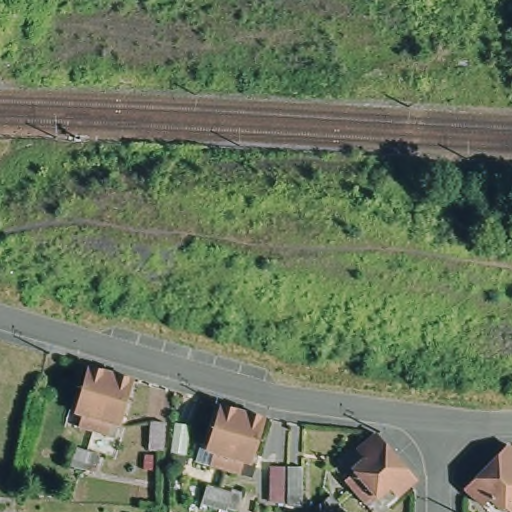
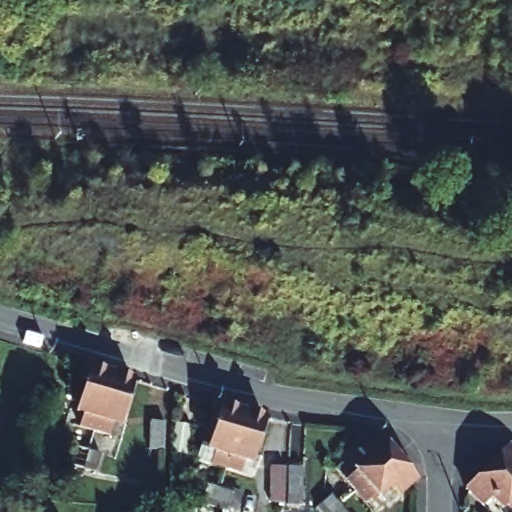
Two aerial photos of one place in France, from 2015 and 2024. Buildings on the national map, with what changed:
unchanged [(83,425),(88,411),(82,409),(94,366),(109,371),(115,373),(99,430),(83,425)]
unchanged [(137,379),(124,423),(118,421),(113,434),(99,430),(115,373),(137,379)]
unchanged [(215,466),(218,453),(213,452),(225,405),(246,411),(233,460),(231,470),(215,466)]
unchanged [(246,411),(248,412),(269,417),(256,464),(249,461),(246,474),(231,470),(233,460),(246,411)]
unchanged [(384,471),(359,493),(347,479),(369,459),(363,451),(381,434),(401,457),(384,471)]
unchanged [(501,508),(489,498),(481,506),(464,490),(464,489),(485,468),(508,446),(512,450),(512,512),(511,512),(504,505),(501,508)]
unchanged [(83,473),(71,469),(76,450),(88,454),(100,458),(95,476),(83,473)]
unchanged [(417,484),(402,496),(396,489),(373,509),(359,493),(384,471),(401,457),(421,479),(421,481),(417,484)]
unchanged [(203,508),(208,490),(223,495),(233,498),(228,512),(215,512),(203,508)]
unchanged [(318,512),(333,500),(342,510),(343,512),(318,512)]

